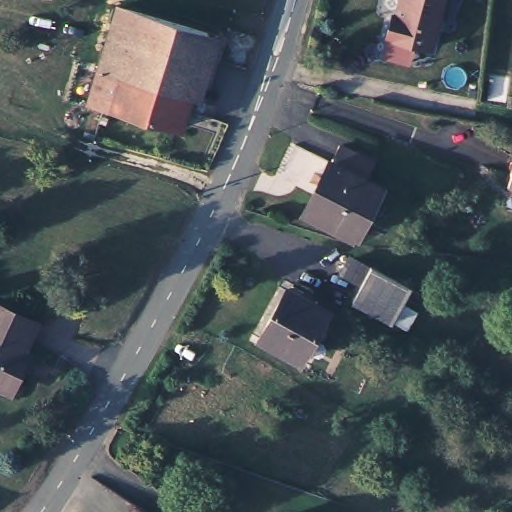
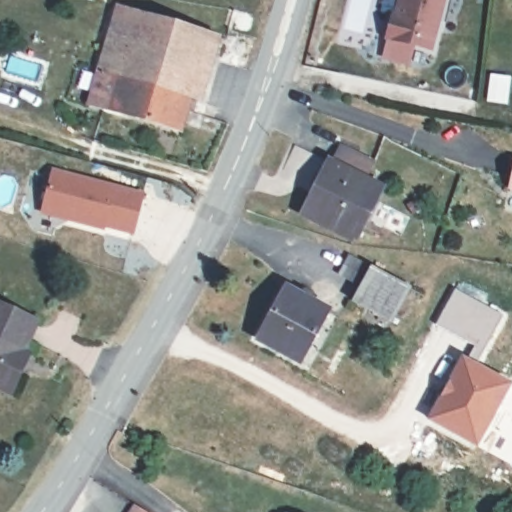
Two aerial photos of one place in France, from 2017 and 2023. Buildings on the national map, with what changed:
unchanged [(423,57),(380,47),(387,25),(391,25),(397,0),(426,0),(438,3),(423,57)]
unchanged [(203,42),(182,108),(190,110),(187,120),(181,117),(176,136),(99,114),(87,111),(115,17),(203,42)]
unchanged [(362,167),(353,184),(367,191),(341,241),(295,218),(330,151),(362,167)]
unchanged [(511,162),(512,163),(512,195),(504,193),(511,162)]
new [(40,212),(52,168),(145,192),(133,235),(40,212)]
unchanged [(410,287),(392,320),(354,298),(372,266),(410,287)]
new [(507,318),(478,368),(512,387),(512,390),(478,450),(430,423),(470,357),(472,358),(477,349),(438,327),(458,291),(507,318)]
unchanged [(321,314),(297,362),(255,342),(280,293),(321,314)]
unchanged [(27,331),(9,371),(15,373),(3,397),(0,395),(0,319),(27,331)]

